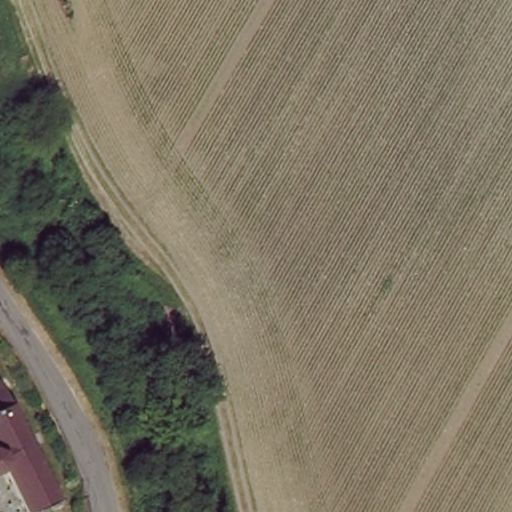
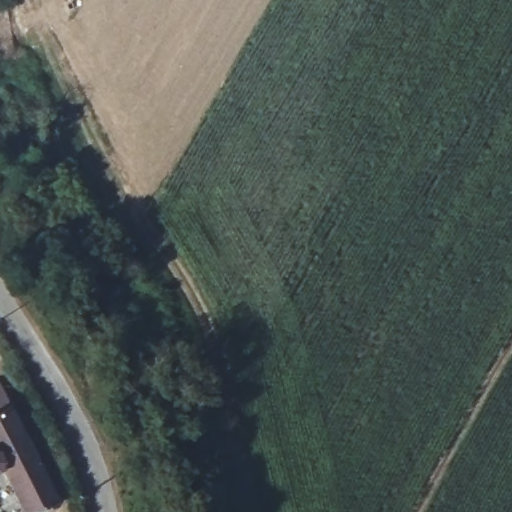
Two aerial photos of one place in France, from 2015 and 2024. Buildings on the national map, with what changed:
unchanged [(25,512),(7,472),(0,475),(0,389),(7,386),(16,406),(62,505),(45,512),(25,512)]

